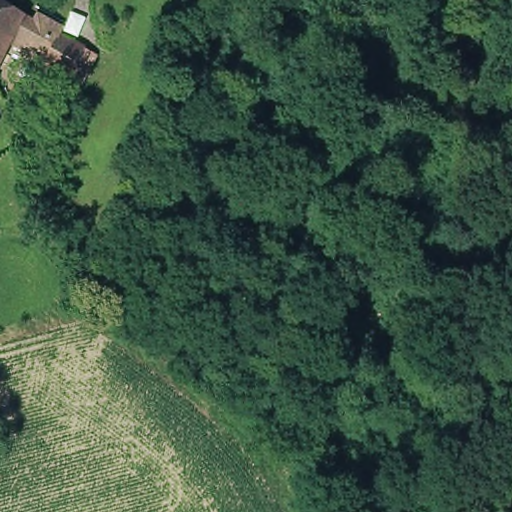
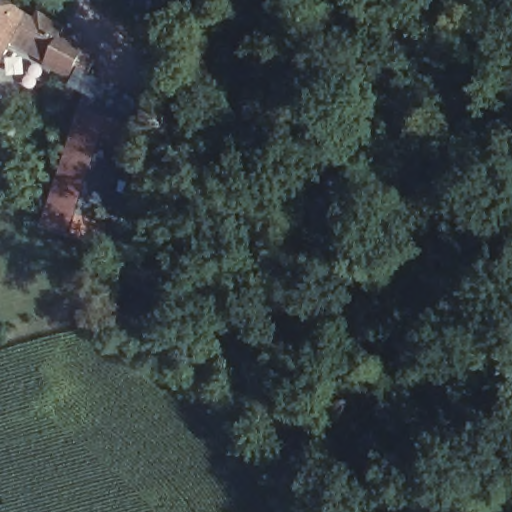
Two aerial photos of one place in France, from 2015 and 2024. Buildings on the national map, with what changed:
unchanged [(30,14),(45,20),(57,27),(54,34),(78,47),(62,75),(46,67),(32,57),(5,42),(0,52),(0,6),(30,22),(30,14)]
new [(62,157),(80,106),(131,122),(122,146),(102,140),(84,211),(90,212),(85,243),(39,229),(62,157)]

